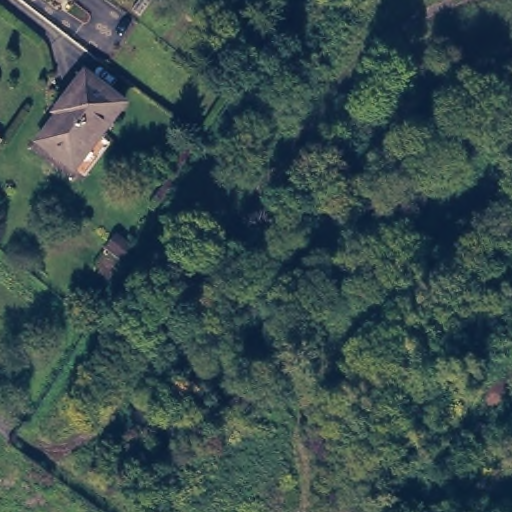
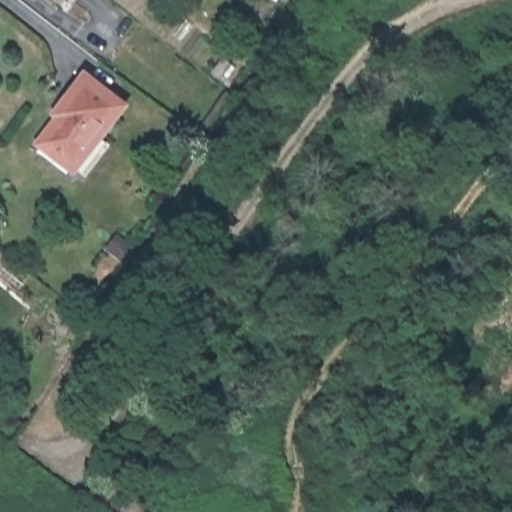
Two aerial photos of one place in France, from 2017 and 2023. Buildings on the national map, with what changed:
unchanged [(110,69),(90,54),(104,35),(125,51),(110,69)]
unchanged [(222,74),(215,69),(223,59),(230,64),(222,74)]
unchanged [(47,139),(67,112),(63,109),(92,72),(129,100),(80,164),(47,139)]

